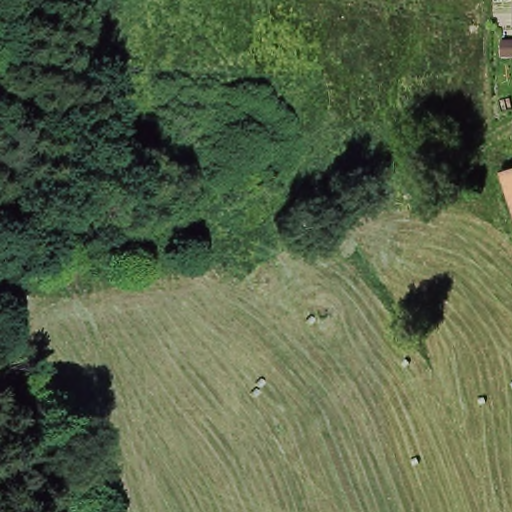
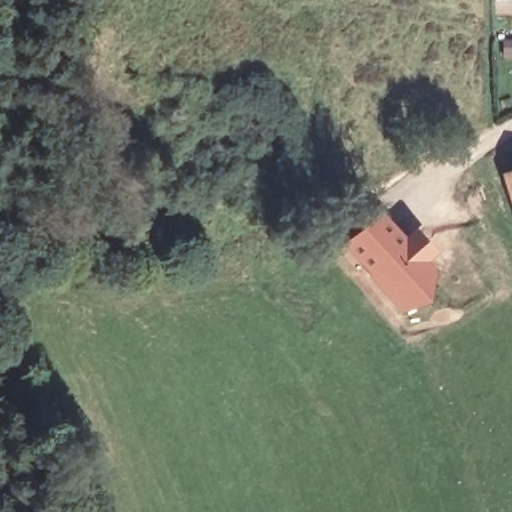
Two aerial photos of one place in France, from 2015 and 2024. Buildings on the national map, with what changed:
unchanged [(508,175),(512,174),(512,189),(508,175)]
new [(407,239),(420,230),(437,252),(427,261),(442,283),(402,313),(341,242),(380,209),(407,239)]

